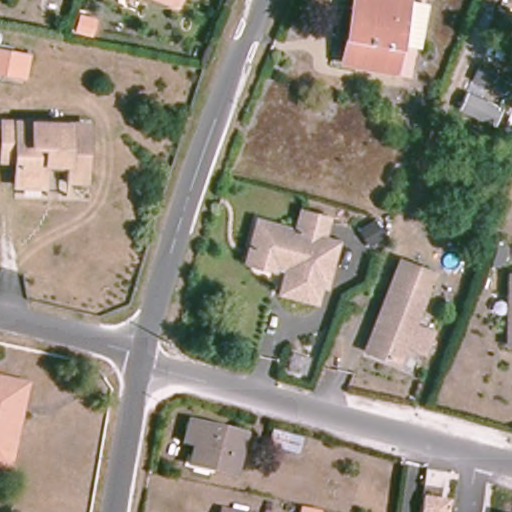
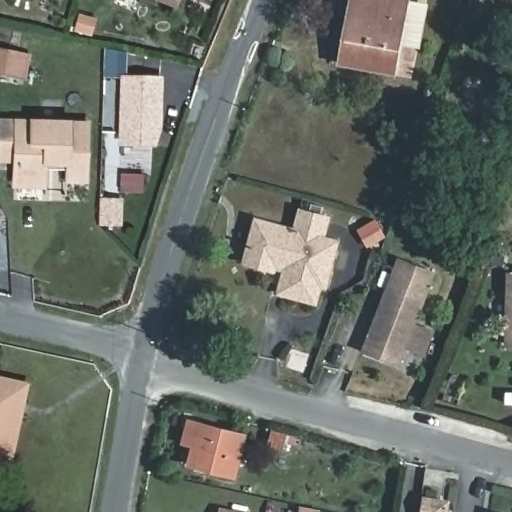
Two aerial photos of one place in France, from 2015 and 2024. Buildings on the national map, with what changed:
unchanged [(177,4),(166,0),(179,0),(177,4)]
unchanged [(346,39),(354,0),(394,0),(405,2),(405,5),(425,8),(417,52),(397,48),(393,74),(356,68),(342,65),(346,39)]
unchanged [(30,55),(24,81),(0,77),(0,49),(30,55)]
new [(118,146),(119,74),(161,75),(160,129),(154,146),(118,146)]
unchanged [(83,125),(82,179),(65,178),(66,163),(42,162),(41,184),(13,184),(13,159),(0,159),(0,141),(0,123),(83,125)]
new [(101,200),(122,201),(121,226),(101,225),(101,200)]
unchanged [(251,246),(259,220),(293,229),(298,209),(323,216),(317,236),(338,241),(334,259),(331,258),(325,281),(323,281),(319,297),(282,287),(287,270),(248,259),(251,246)]
unchanged [(437,276),(420,323),(428,326),(425,335),(432,337),(424,358),(409,352),(402,370),(364,358),(400,262),(437,276)]
unchanged [(510,276),(512,276),(512,346),(508,345),(510,276)]
unchanged [(0,469),(0,380),(17,383),(26,385),(21,410),(13,446),(8,471),(0,469)]
unchanged [(189,457),(192,443),(183,441),(188,422),(243,437),(233,476),(215,471),(187,464),(189,457)]
unchanged [(271,430),(301,438),(297,454),(267,446),(271,430)]
unchanged [(448,512),(419,512),(421,494),(449,498),(448,512)]
unchanged [(223,512),(221,512),(221,511),(223,512)]

